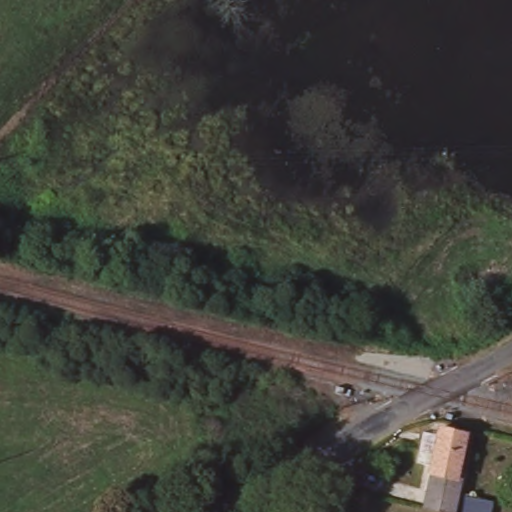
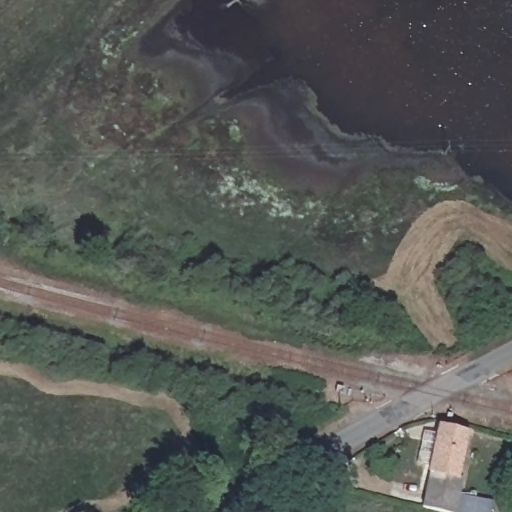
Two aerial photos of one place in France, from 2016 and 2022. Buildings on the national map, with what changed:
unchanged [(455,510),(445,507),(418,501),(435,430),(461,435),(451,482),(460,483),(455,510)]

